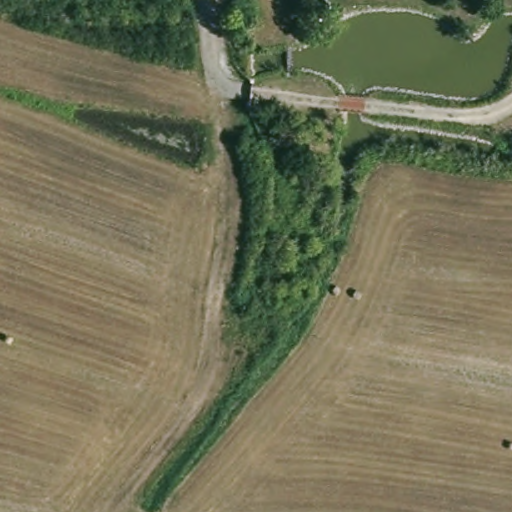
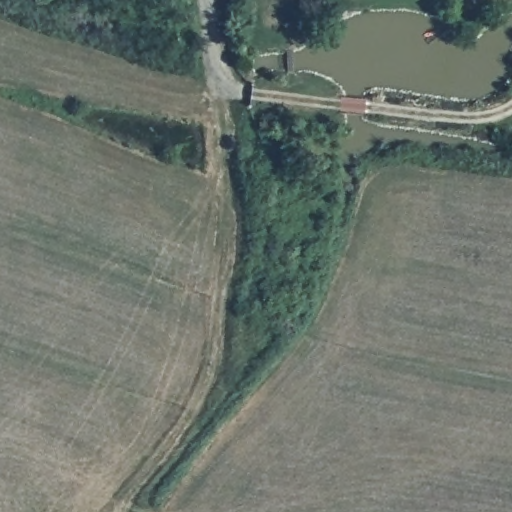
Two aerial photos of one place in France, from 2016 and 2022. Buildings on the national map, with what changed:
unchanged [(190,11),(190,18),(183,19),(182,12),(190,11)]

